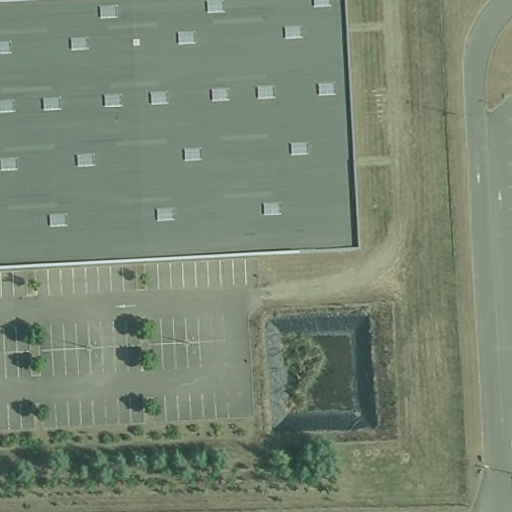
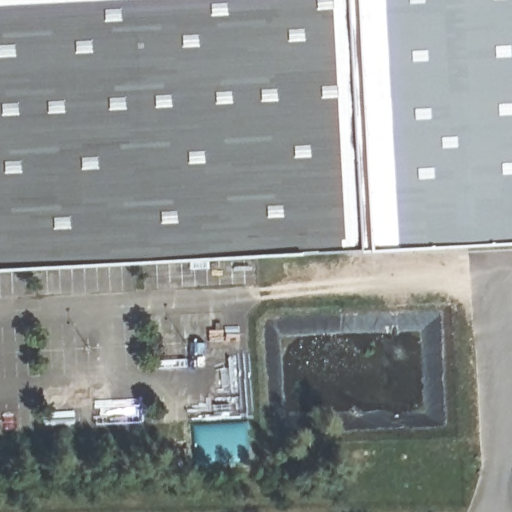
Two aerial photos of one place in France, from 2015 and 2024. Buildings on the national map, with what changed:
unchanged [(0,0),(340,0),(342,52),(353,243),(0,260),(0,0)]
new [(353,243),(340,0),(512,0),(512,239),(353,243)]

